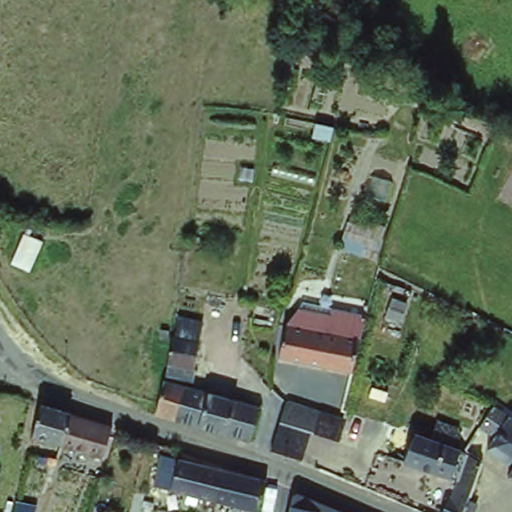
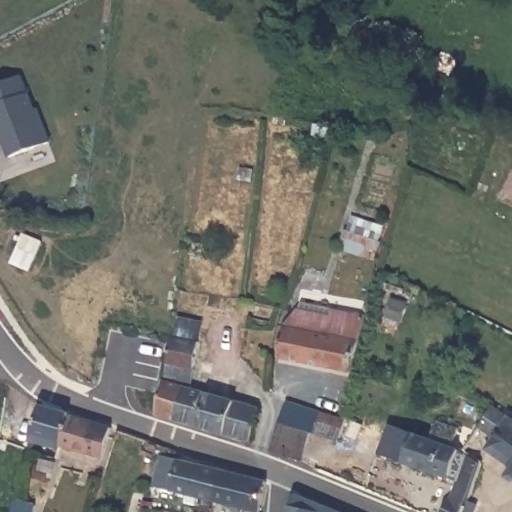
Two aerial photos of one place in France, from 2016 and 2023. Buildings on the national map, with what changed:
new [(39,106),(51,143),(8,159),(0,137),(0,85),(22,77),(34,109),(39,106)]
unchanged [(374,254),(342,241),(352,212),(385,224),(374,254)]
unchanged [(297,312),(298,306),(328,311),(362,317),(354,343),(292,332),(294,313),(297,312)]
unchanged [(192,383),(258,405),(248,439),(196,422),(155,410),(155,404),(169,331),(198,336),(192,383)]
unchanged [(277,360),(283,331),(292,332),(354,343),(357,344),(349,373),(277,360)]
unchanged [(271,445),(282,418),(289,395),(347,407),(339,436),(339,438),(312,430),(302,457),(271,445)]
unchanged [(491,445),(496,437),(482,425),(496,401),(512,412),(512,459),(491,445)]
unchanged [(59,443),(54,441),(33,433),(40,405),(68,414),(111,428),(104,456),(59,443)]
unchanged [(449,510),(441,507),(439,512),(420,512),(425,500),(428,498),(433,475),(378,457),(379,456),(388,427),(409,434),(416,417),(438,425),(433,442),(443,445),(460,450),(447,492),(446,495),(453,498),(449,510)]
unchanged [(153,483),(159,453),(220,467),(214,495),(200,493),(153,483)]
unchanged [(90,462),(104,465),(100,475),(88,471),(90,462)]
unchanged [(257,505),(214,495),(220,467),(248,473),(263,476),(257,505)]
unchanged [(511,471),(512,470),(512,472),(511,471)]
unchanged [(315,512),(287,512),(289,498),(296,492),(319,501),(315,512)]
unchanged [(319,501),(346,512),(315,512),(319,501)]
unchanged [(15,512),(7,512),(8,510),(15,512)]

